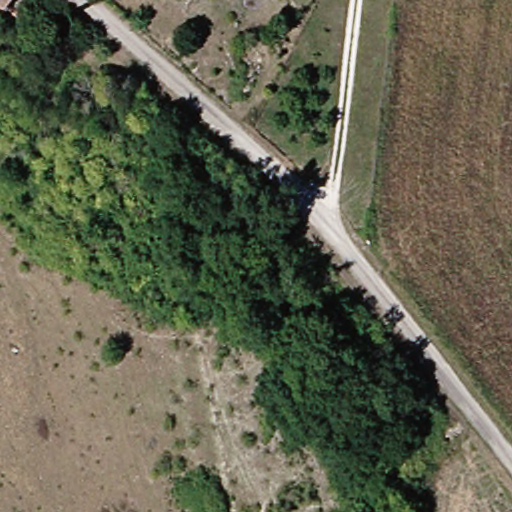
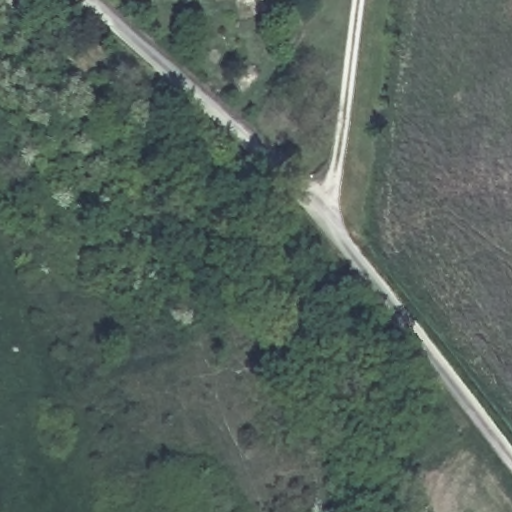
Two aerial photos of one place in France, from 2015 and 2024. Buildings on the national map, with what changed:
unchanged [(7,2),(4,0),(9,0),(7,2)]

